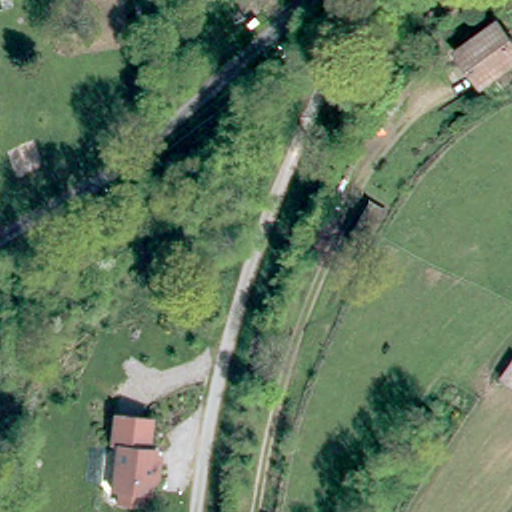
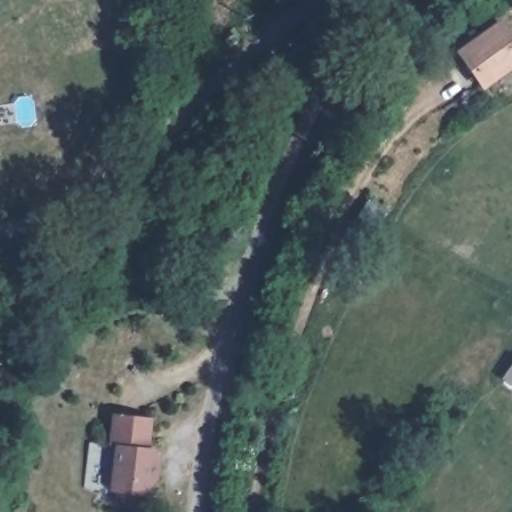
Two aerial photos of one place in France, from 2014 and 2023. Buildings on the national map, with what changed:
unchanged [(512,42),(512,64),(479,86),(447,53),(494,23),(512,42)]
unchanged [(156,433),(153,462),(159,463),(159,468),(158,477),(160,477),(163,481),(162,492),(158,496),(156,495),(154,508),(148,507),(147,512),(125,512),(125,505),(118,504),(123,460),(117,459),(120,429),(156,433)]

